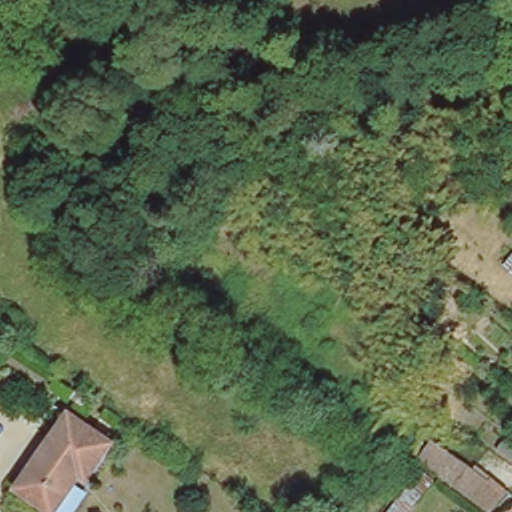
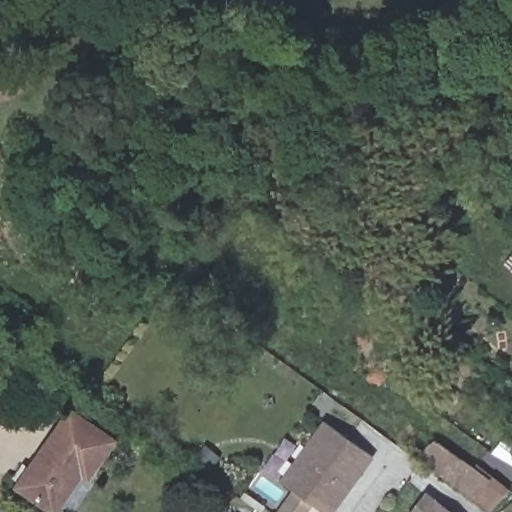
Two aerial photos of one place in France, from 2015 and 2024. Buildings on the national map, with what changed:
unchanged [(56,511),(19,486),(70,411),(114,441),(89,477),(82,472),(76,481),(56,511)]
new [(321,512),(313,506),(309,512),(277,512),(293,490),(279,480),(322,420),(374,457),(335,512),(321,512)]
unchanged [(436,435),(469,460),(461,471),(482,487),(493,473),(507,485),(491,506),(421,454),(436,435)]
unchanged [(512,460),(499,448),(508,437),(512,441),(512,460)]
demolished [(434,472),(403,512),(388,512),(425,463),(434,472)]
new [(453,512),(411,512),(426,492),(453,512)]

